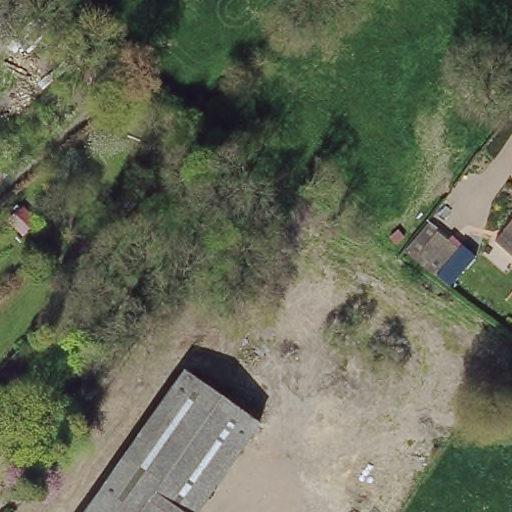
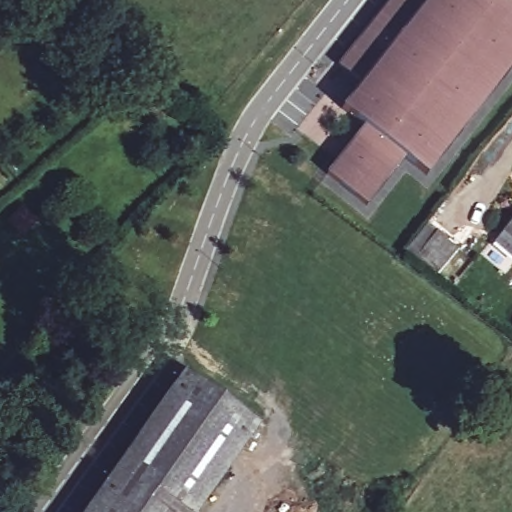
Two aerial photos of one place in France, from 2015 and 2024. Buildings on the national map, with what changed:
new [(512,9),(512,68),(427,175),(402,158),(370,202),(331,169),(364,126),(342,108),(362,84),(338,65),(390,0),(500,0),(512,9)]
unchanged [(442,273),(420,255),(412,248),(429,224),(437,230),(460,248),(442,273)]
unchanged [(492,249),(502,238),(512,226),(512,267),(492,249)]
unchanged [(182,512),(114,466),(179,368),(254,419),(192,512),(182,512)]
unchanged [(182,512),(82,512),(114,466),(182,512)]

